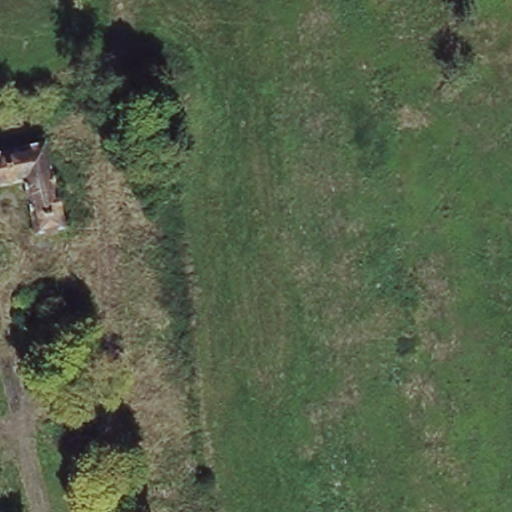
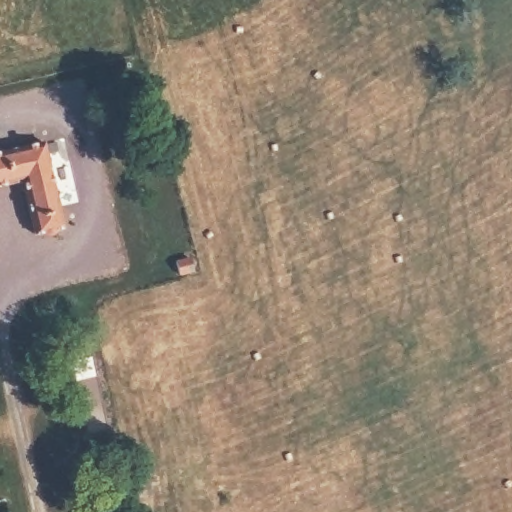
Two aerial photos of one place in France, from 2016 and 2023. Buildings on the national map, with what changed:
unchanged [(27,235),(15,183),(0,187),(0,147),(36,139),(57,229),(27,235)]

